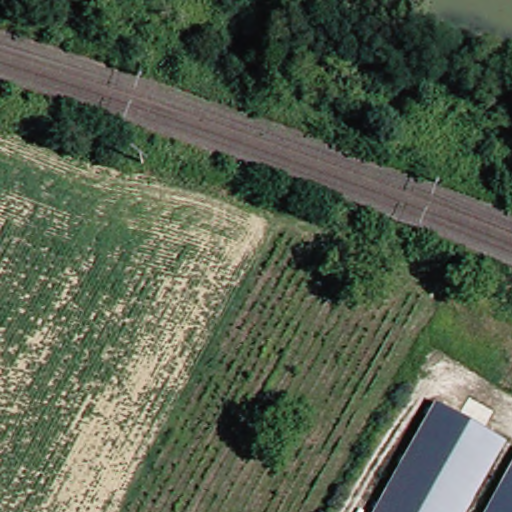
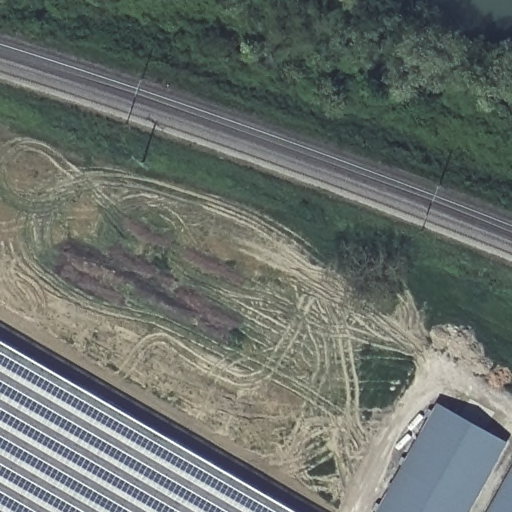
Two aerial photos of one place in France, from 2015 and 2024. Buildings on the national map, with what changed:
new [(299,512),(0,512),(0,340),(299,512)]
unchanged [(436,406),(504,445),(466,512),(377,512),(436,406)]
unchanged [(512,470),(512,512),(489,512),(512,470)]

